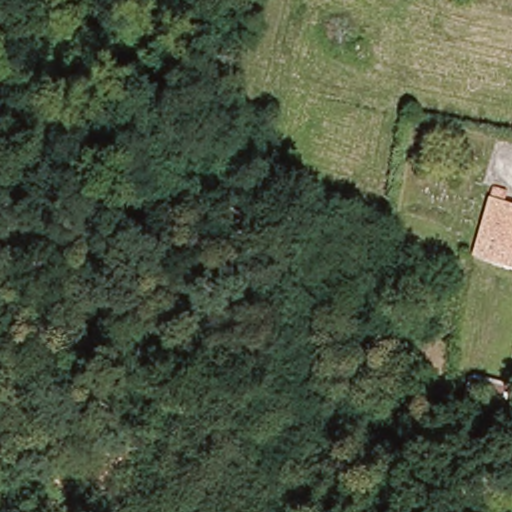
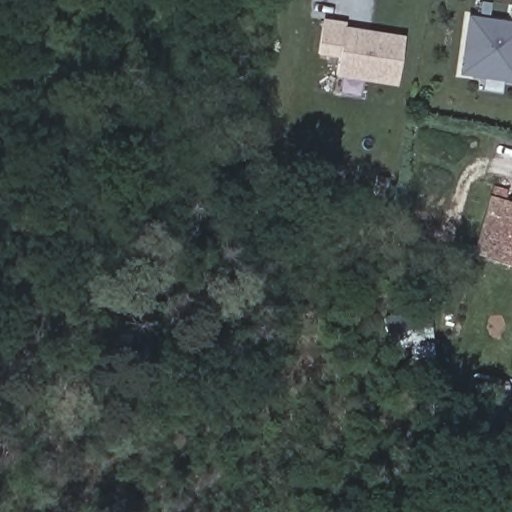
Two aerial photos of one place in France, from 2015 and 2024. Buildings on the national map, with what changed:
new [(512,81),(460,75),(468,17),(512,21),(512,81)]
new [(345,22),(344,27),(404,36),(396,87),(336,78),(339,59),(318,55),(324,18),(345,22)]
unchanged [(496,188),(509,192),(506,203),(512,204),(512,264),(477,255),(496,188)]
new [(417,356),(415,346),(391,350),(386,318),(427,312),(433,353),(417,356)]

